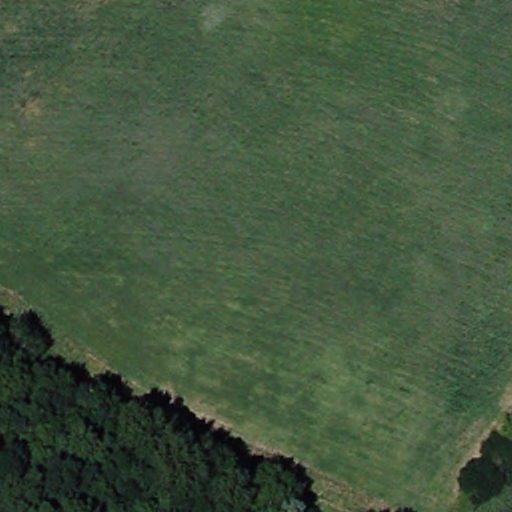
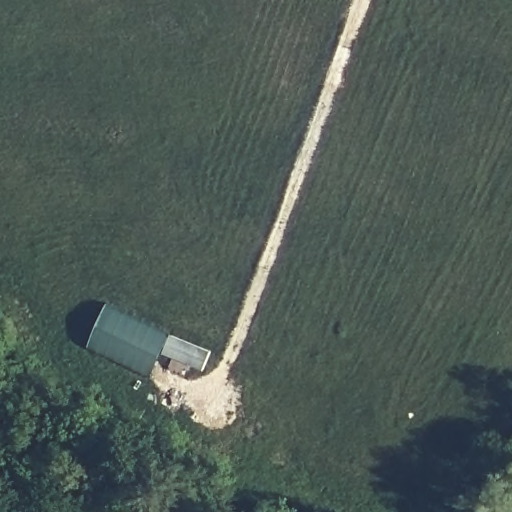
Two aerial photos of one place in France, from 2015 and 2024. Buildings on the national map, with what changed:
new [(107,305),(167,335),(150,377),(87,346),(107,305)]
new [(162,354),(170,335),(210,351),(202,371),(162,354)]

